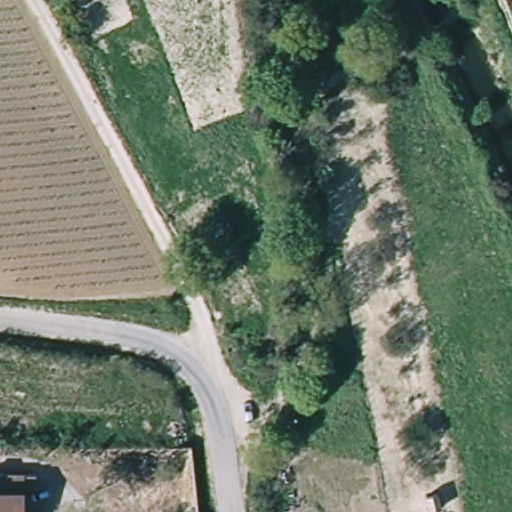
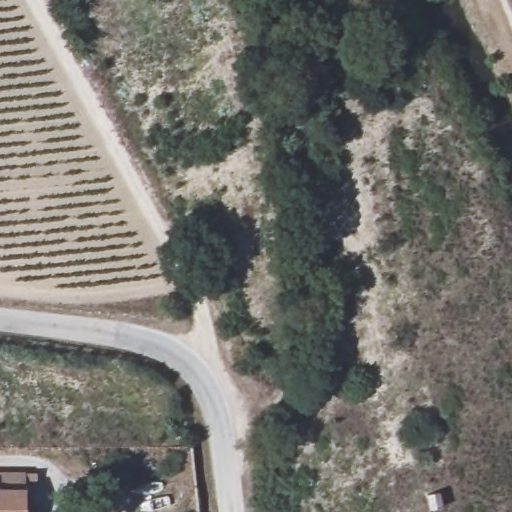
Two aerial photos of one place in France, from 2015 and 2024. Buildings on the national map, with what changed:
unchanged [(32,495),(20,495),(20,512),(0,512),(0,483),(32,483),(32,495)]
unchanged [(431,511),(428,497),(440,495),(444,509),(431,511)]

